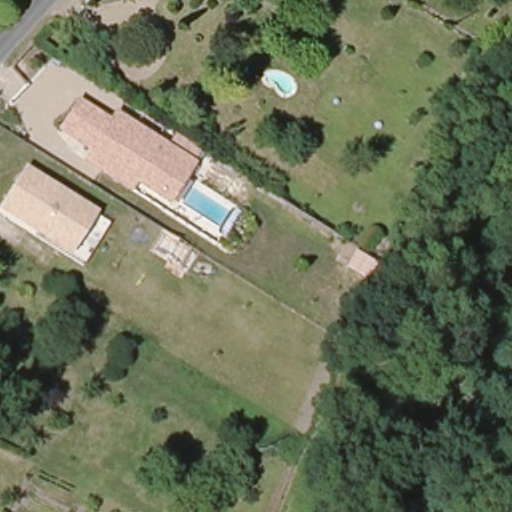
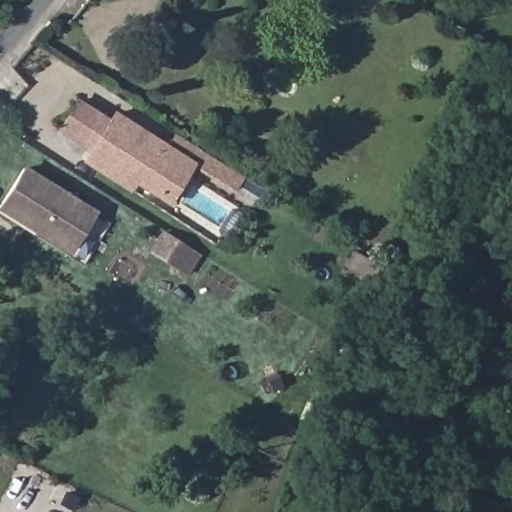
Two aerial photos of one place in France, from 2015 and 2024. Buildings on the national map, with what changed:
unchanged [(80,161),(85,151),(55,130),(76,98),(107,119),(112,110),(166,143),(174,131),(203,150),(195,161),(167,205),(133,184),(127,191),(80,161)]
unchanged [(70,255),(0,212),(0,204),(23,165),(97,210),(70,255)]

